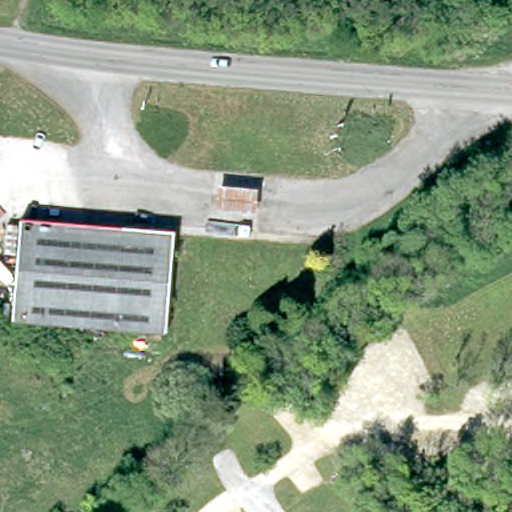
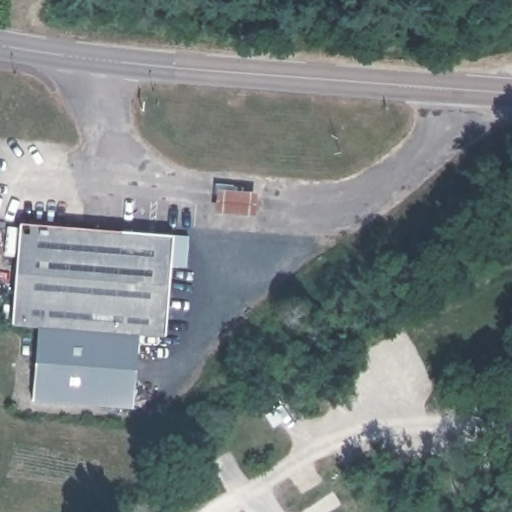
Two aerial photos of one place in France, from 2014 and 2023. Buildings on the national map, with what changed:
unchanged [(18,222),(167,234),(158,332),(10,319),(18,222)]
new [(134,409),(33,401),(39,321),(139,331),(134,409)]

